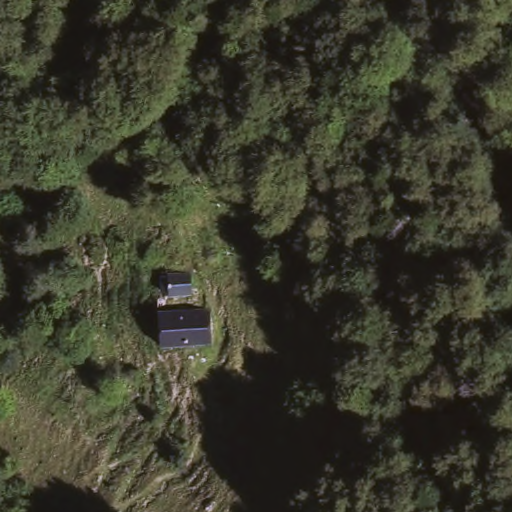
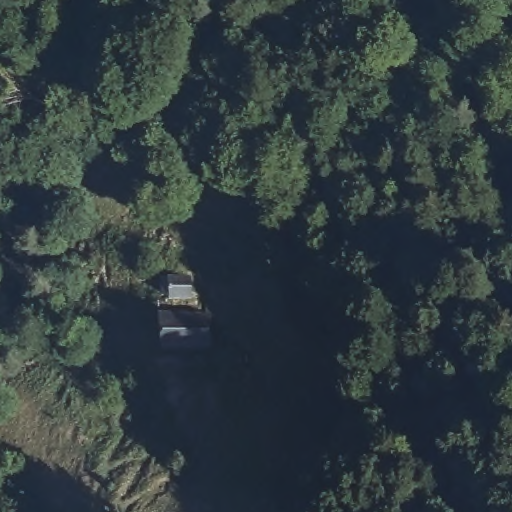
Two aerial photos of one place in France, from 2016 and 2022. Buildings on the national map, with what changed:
unchanged [(160,294),(160,281),(160,269),(185,268),(186,292),(160,294)]
unchanged [(154,348),(153,326),(152,308),(203,305),(205,345),(154,348)]

